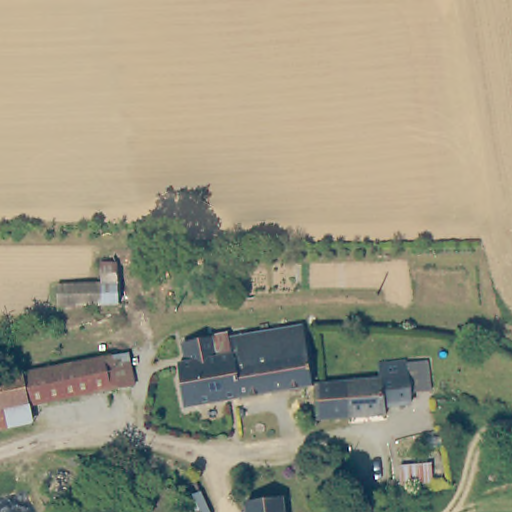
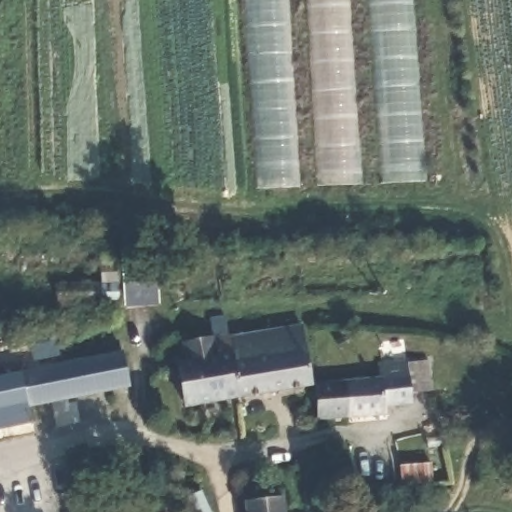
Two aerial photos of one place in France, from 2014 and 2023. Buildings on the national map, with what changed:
new [(245,0),(286,0),(299,185),(258,189),(245,0)]
new [(308,0),(349,0),(361,185),(318,185),(308,0)]
new [(371,0),(411,0),(424,181),(384,184),(371,0)]
new [(57,307),(55,283),(100,281),(100,264),(118,263),(119,305),(57,307)]
new [(125,308),(121,265),(157,263),(161,306),(125,308)]
unchanged [(237,396),(228,340),(302,326),(310,385),(237,396)]
unchanged [(182,405),(176,364),(184,361),(180,342),(218,335),(221,342),(228,340),(237,396),(182,405)]
unchanged [(54,364),(89,357),(107,353),(123,350),(130,387),(112,390),(26,406),(20,371),(54,364)]
unchanged [(344,380),(377,375),(378,365),(404,361),(410,405),(386,407),(386,416),(347,420),(344,380)]
unchanged [(0,412),(0,376),(20,371),(26,406),(0,412)]
unchanged [(344,380),(347,420),(317,423),(310,385),(344,380)]
unchanged [(30,428),(0,434),(0,412),(26,406),(30,428)]
unchanged [(283,495),(286,512),(251,512),(249,498),(283,495)]

